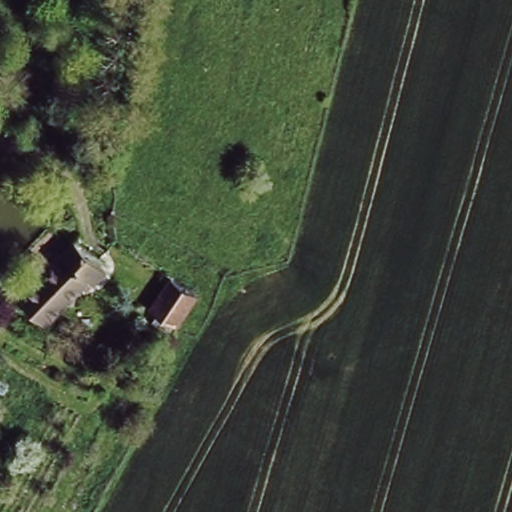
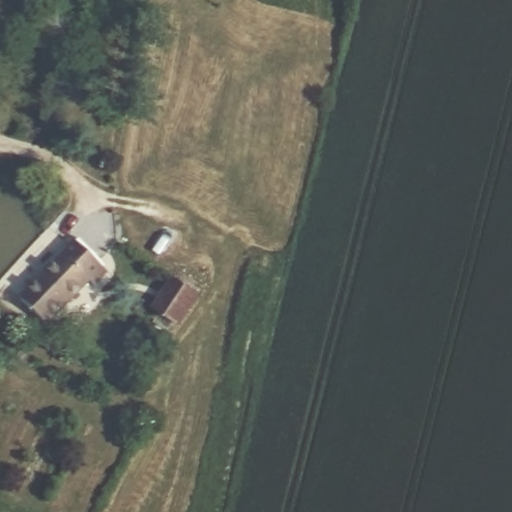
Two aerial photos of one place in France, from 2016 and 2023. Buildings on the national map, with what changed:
unchanged [(14,294),(68,231),(102,259),(86,277),(80,272),(41,317),(14,294)]
unchanged [(152,310),(167,287),(161,284),(168,275),(173,279),(198,295),(177,326),(152,310)]

